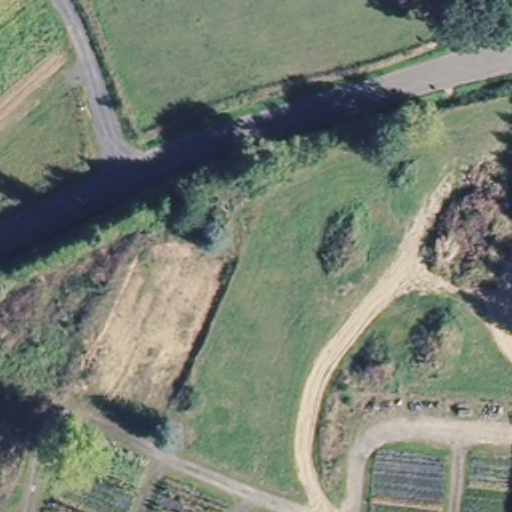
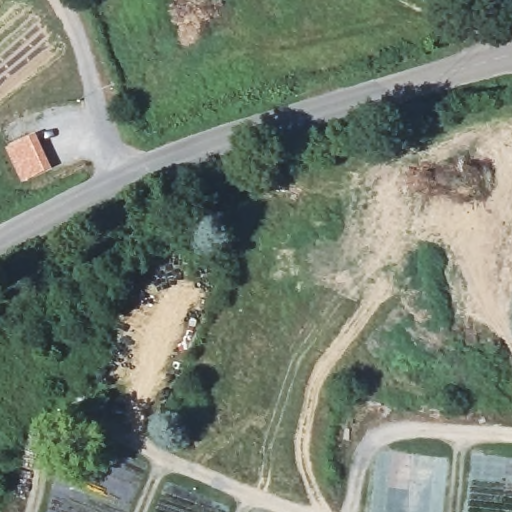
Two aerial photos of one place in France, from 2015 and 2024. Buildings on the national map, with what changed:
new [(6,147),(36,134),(53,170),(23,184),(6,147)]

